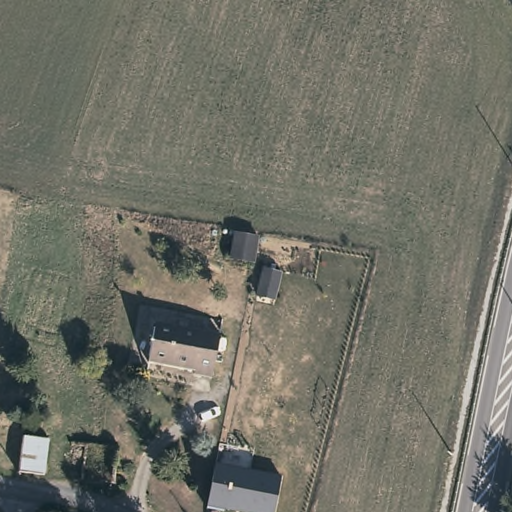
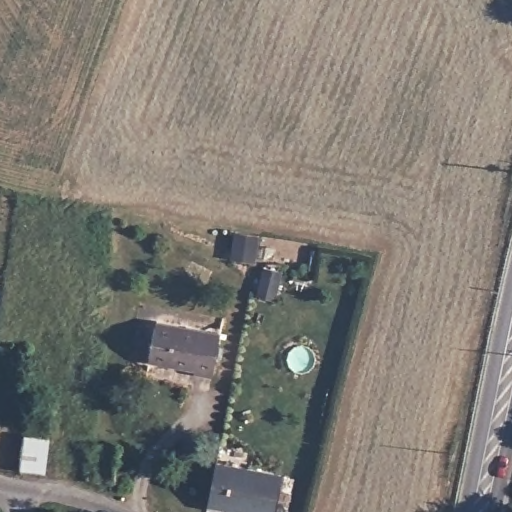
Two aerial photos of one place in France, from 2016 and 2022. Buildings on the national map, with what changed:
unchanged [(235,229),(258,232),(255,254),(232,250),(235,229)]
unchanged [(159,320),(223,332),(215,375),(196,372),(197,370),(151,361),(159,320)]
unchanged [(50,436),(44,475),(18,473),(21,431),(50,436)]
unchanged [(215,466),(281,477),(274,512),(240,512),(209,505),(215,466)]

